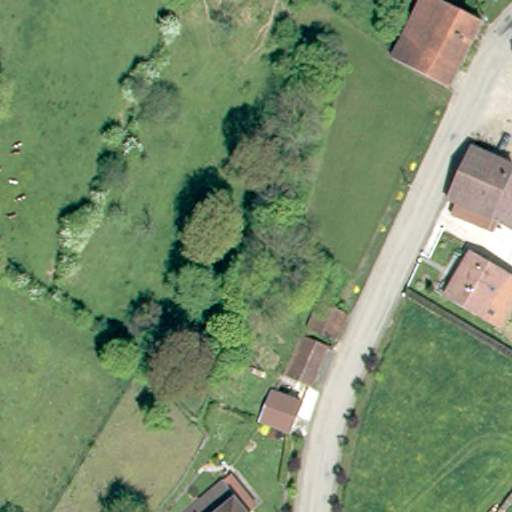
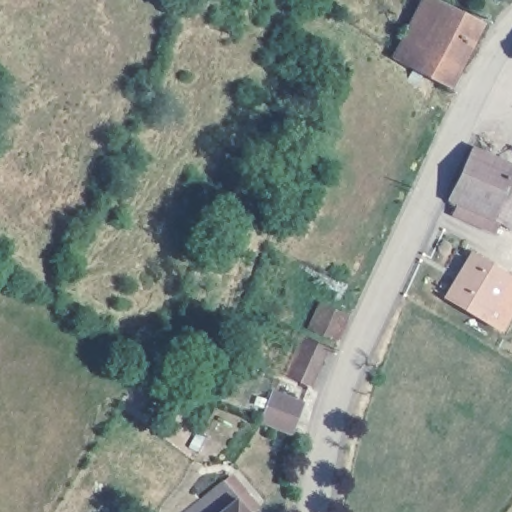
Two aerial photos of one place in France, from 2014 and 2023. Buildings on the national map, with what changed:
unchanged [(397,47),(420,0),(439,0),(482,24),(447,89),(390,58),(397,47)]
unchanged [(475,209),(445,195),(474,144),(511,162),(507,170),(512,173),(512,226),(495,218),(490,227),(470,218),(475,209)]
unchanged [(448,298),(472,254),(512,277),(512,309),(499,330),(448,298)]
unchanged [(308,328),(321,301),(347,313),(337,340),(308,328)]
unchanged [(286,375),(305,333),(328,344),(308,385),(286,375)]
unchanged [(260,418),(272,390),(302,402),(291,431),(260,418)]
unchanged [(221,482),(227,480),(231,478),(254,505),(247,512),(184,512),(221,482)]

